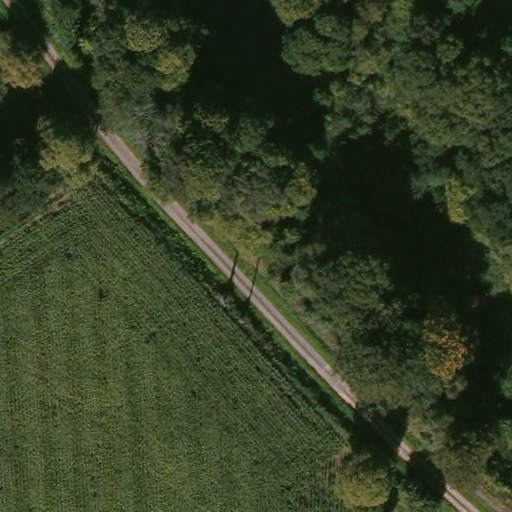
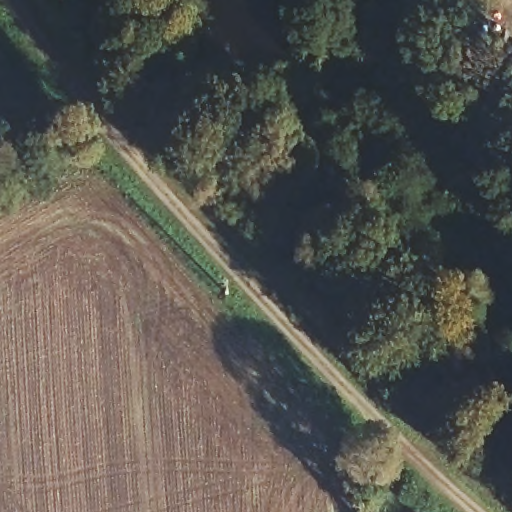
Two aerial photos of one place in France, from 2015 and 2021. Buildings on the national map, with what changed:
unchanged [(469,132),(444,104),(472,80),(496,108),(469,132)]

